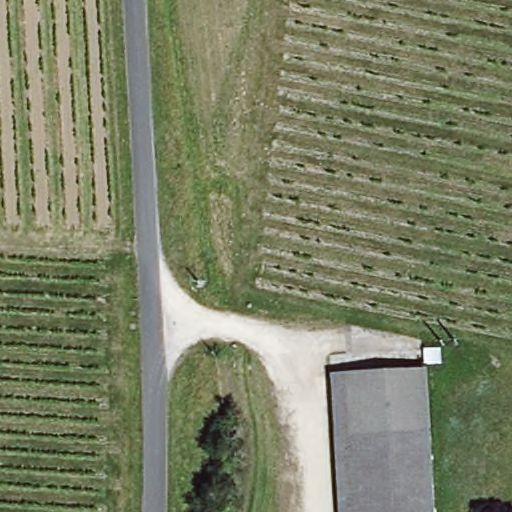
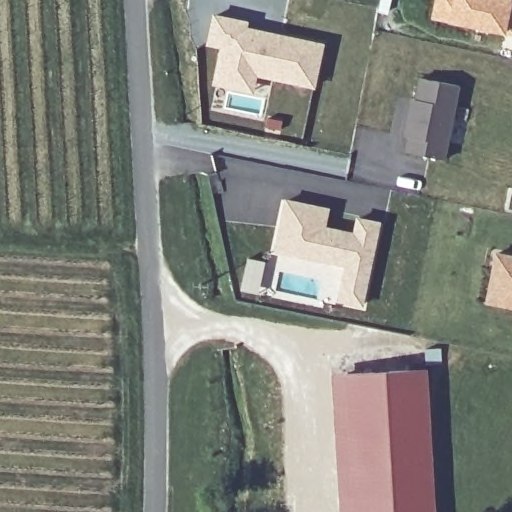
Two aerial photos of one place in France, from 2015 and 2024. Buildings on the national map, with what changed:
new [(434,0),(512,0),(512,8),(506,35),(430,18),(434,0)]
new [(240,95),(222,91),(231,54),(217,51),(224,22),(332,49),(321,97),(245,78),(263,83),(260,100),(240,95)]
new [(461,85),(447,160),(405,153),(407,140),(403,139),(410,97),(414,98),(417,77),(461,85)]
new [(341,311),(350,276),(279,259),(291,210),(312,215),(332,219),(330,227),(327,238),(358,245),(362,230),(382,235),(363,316),(341,311)]
new [(496,253),(512,257),(512,305),(487,300),(490,284),(496,253)]
unchanged [(337,512),(335,369),(352,369),(355,512),(337,512)]
unchanged [(428,512),(355,512),(352,369),(426,369),(428,512)]

